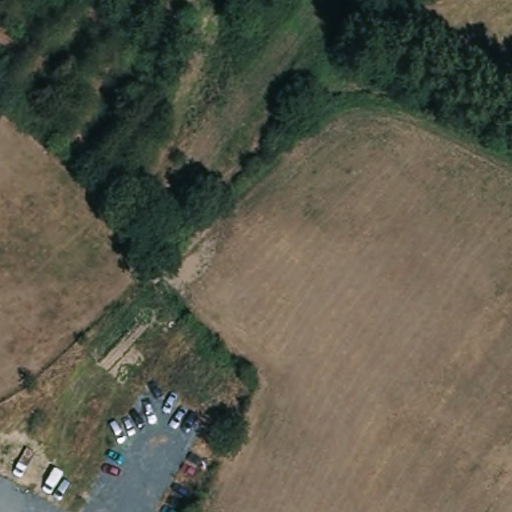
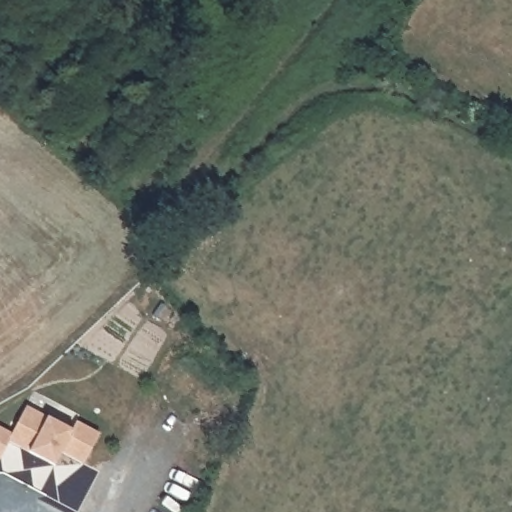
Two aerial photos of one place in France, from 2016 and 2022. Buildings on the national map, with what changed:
new [(0,458),(0,428),(11,434),(26,407),(71,430),(76,421),(99,434),(83,463),(61,452),(54,465),(29,452),(20,447),(9,441),(0,458)]

